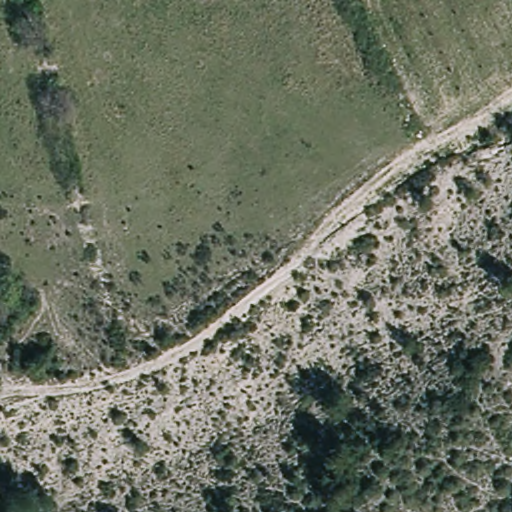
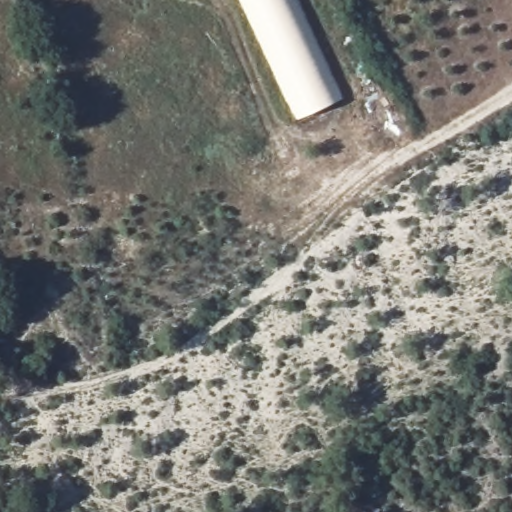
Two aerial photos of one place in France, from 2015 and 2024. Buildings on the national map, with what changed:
new [(239,0),(295,0),(342,98),(295,119),(239,0)]

